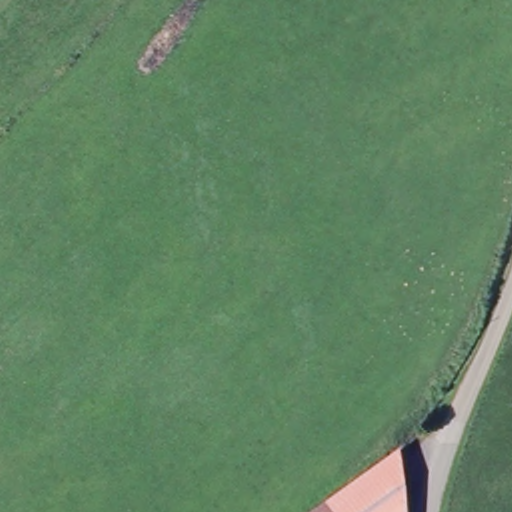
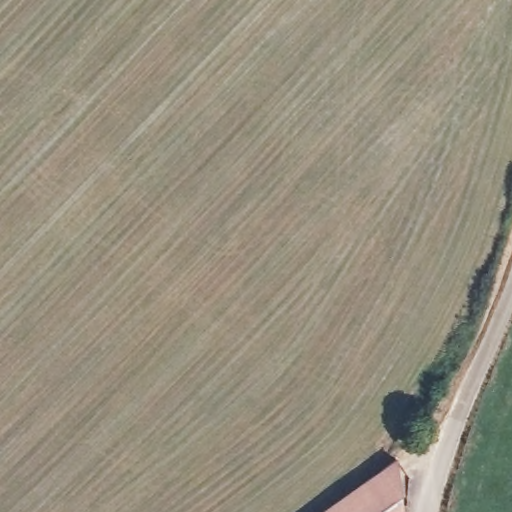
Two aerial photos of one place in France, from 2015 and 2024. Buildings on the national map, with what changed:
unchanged [(397,457),(399,512),(320,512),(397,457)]

